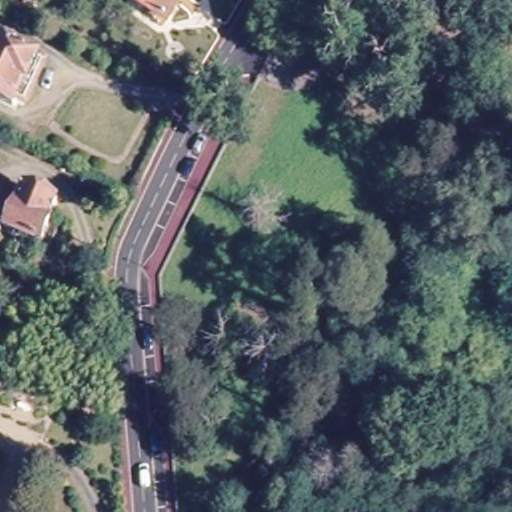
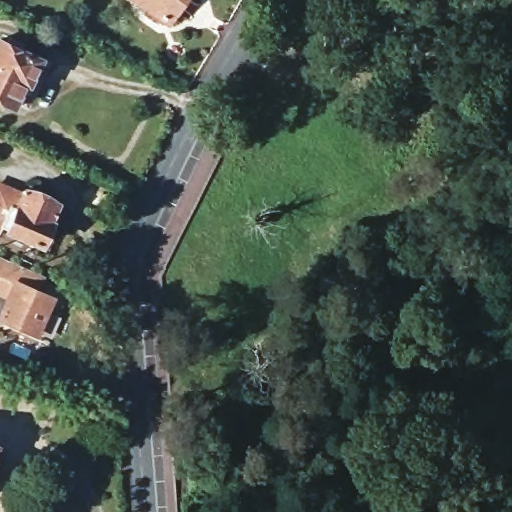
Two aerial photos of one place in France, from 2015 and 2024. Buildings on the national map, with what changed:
unchanged [(137,0),(182,0),(167,21),(137,0)]
unchanged [(26,82),(14,106),(0,100),(0,41),(39,60),(27,83),(26,82)]
unchanged [(58,204),(40,245),(8,231),(8,229),(2,227),(0,234),(0,185),(2,186),(23,195),(26,189),(58,204)]
new [(41,289),(56,295),(39,337),(0,322),(0,310),(5,298),(0,295),(0,258),(46,277),(41,289)]
unchanged [(0,446),(2,447),(0,452),(0,446)]

